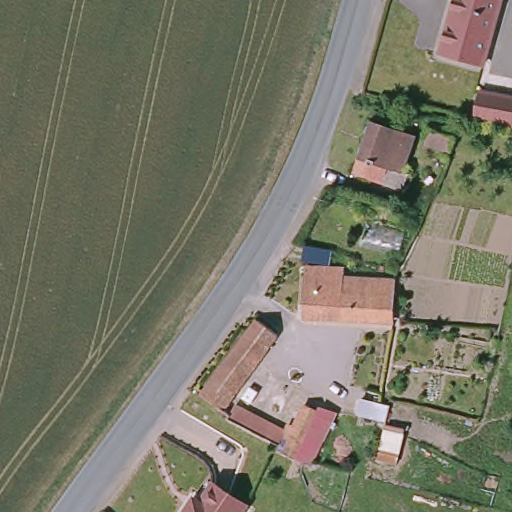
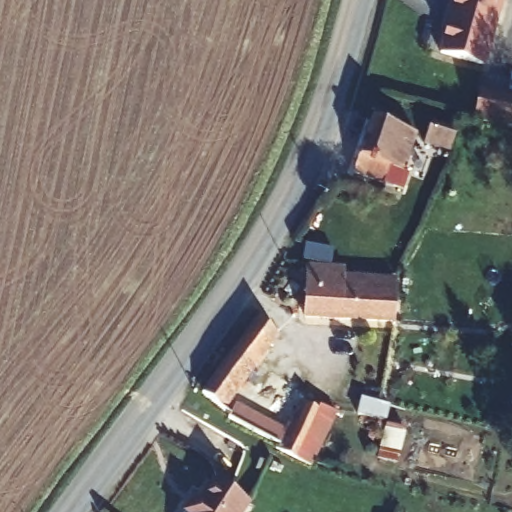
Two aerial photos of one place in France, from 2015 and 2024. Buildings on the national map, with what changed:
unchanged [(485,63),(440,54),(452,0),(499,0),(485,63)]
unchanged [(486,86),(512,92),(512,123),(480,115),(486,86)]
unchanged [(385,114),(383,120),(396,124),(394,130),(416,137),(400,190),(352,176),(373,110),(385,114)]
unchanged [(457,150),(430,142),(437,124),(462,131),(457,150)]
unchanged [(332,247),(332,263),(330,263),(303,262),(303,247),(332,247)]
unchanged [(302,320),(307,267),(330,268),(337,269),(346,270),(345,278),(395,281),(393,299),(392,325),(302,320)]
unchanged [(214,404),(206,399),(259,317),(272,325),(267,332),(274,336),(225,411),(214,404)]
unchanged [(241,404),(285,430),(288,425),(296,430),(305,411),(314,415),(318,408),(333,413),(329,425),(328,426),(318,449),(306,445),(304,444),(301,452),(295,464),(283,457),(275,452),(277,448),(275,446),(259,436),(251,432),(230,420),(233,415),(241,404)]
unchanged [(188,512),(197,498),(205,503),(216,486),(247,507),(243,512),(188,512)]

